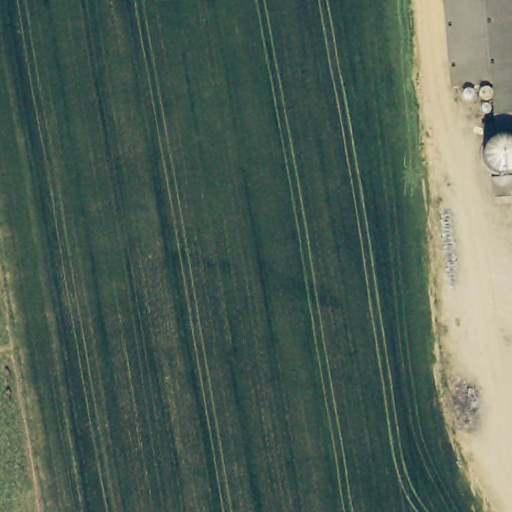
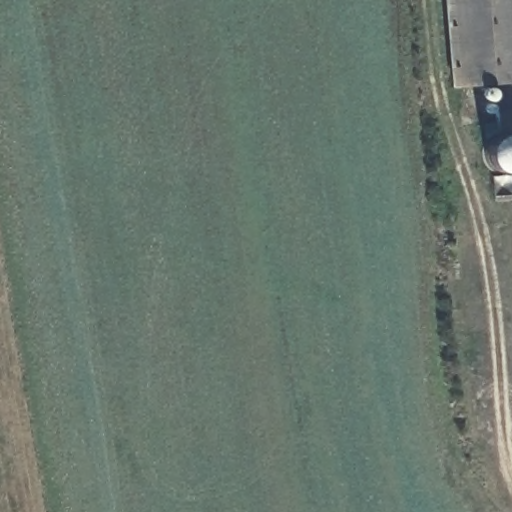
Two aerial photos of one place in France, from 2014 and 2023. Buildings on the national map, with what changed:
unchanged [(512,135),(511,135),(499,137),(489,143),(487,136),(497,129),(492,65),(454,70),(448,0),(512,0),(512,135)]

